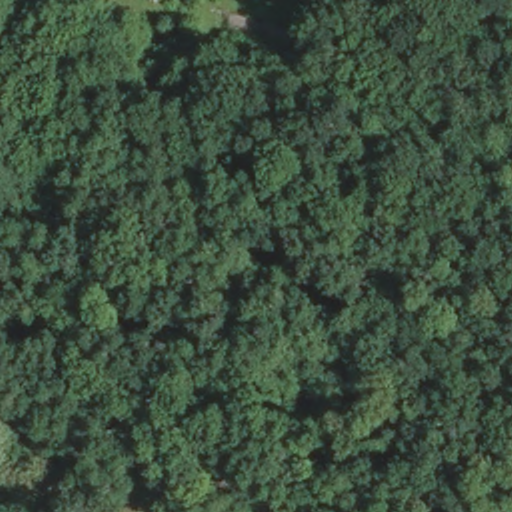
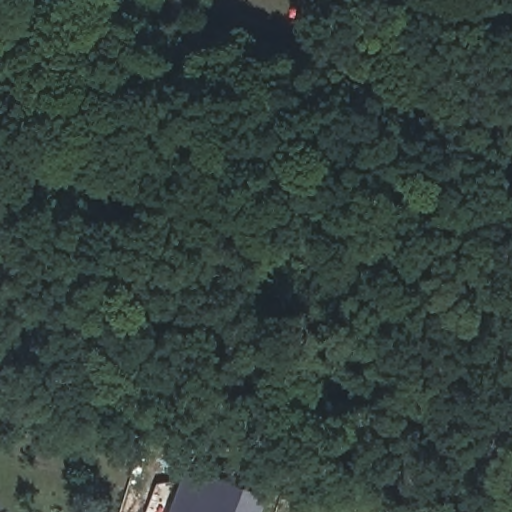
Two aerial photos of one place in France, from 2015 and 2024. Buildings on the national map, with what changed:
new [(186,465),(267,495),(260,512),(169,512),(186,465)]

